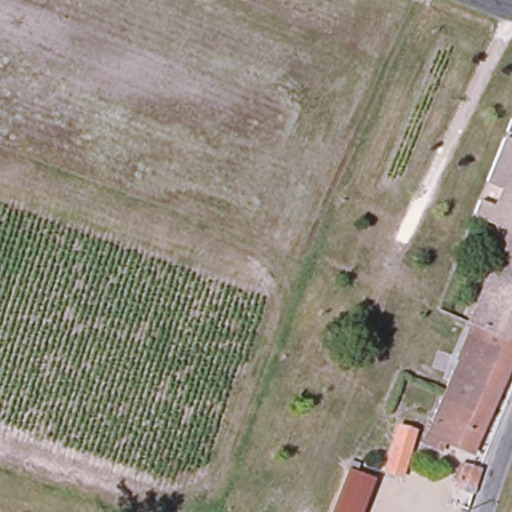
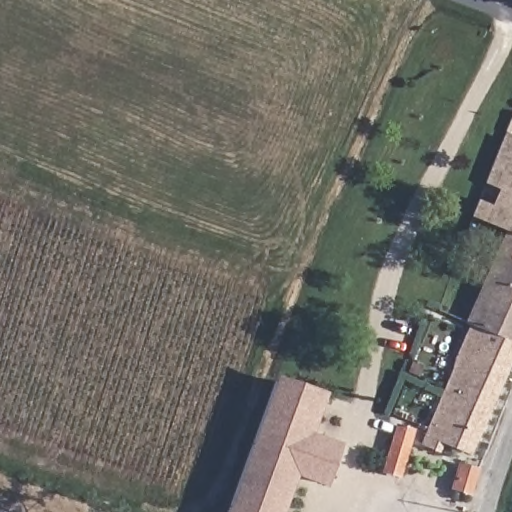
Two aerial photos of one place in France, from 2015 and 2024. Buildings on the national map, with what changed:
unchanged [(476,223),(482,209),(499,216),(507,196),(489,190),(496,172),(506,146),(512,148),(512,237),(476,223)]
unchanged [(468,342),(493,277),(498,278),(512,240),(512,356),(511,359),(468,342)]
unchanged [(472,459),(440,446),(435,460),(419,455),(462,340),(468,342),(511,359),(512,360),(472,459)]
new [(312,434),(343,445),(328,488),(297,478),(284,512),(228,512),(278,376),(327,394),(312,434)]
unchanged [(411,438),(396,482),(380,477),(394,432),(411,438)]
unchanged [(462,512),(459,512),(443,507),(456,469),(475,476),(473,482),(462,512)]

